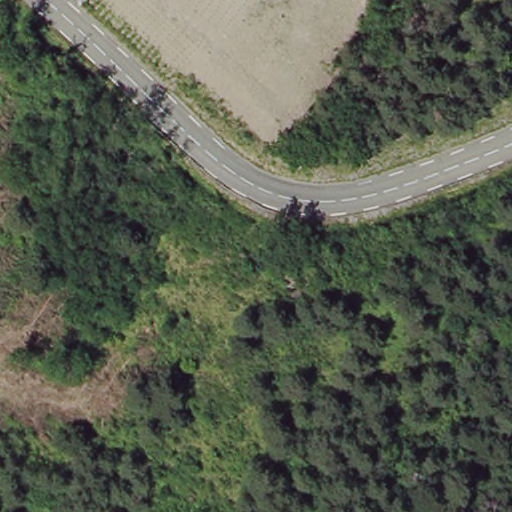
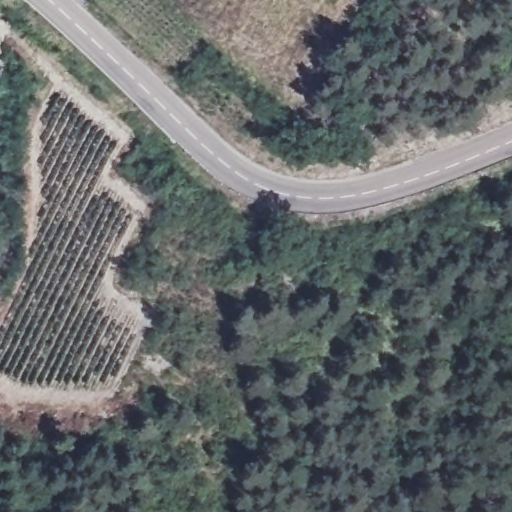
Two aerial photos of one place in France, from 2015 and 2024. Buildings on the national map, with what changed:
unchanged [(68,3),(70,0),(93,0),(83,16),(68,3)]

